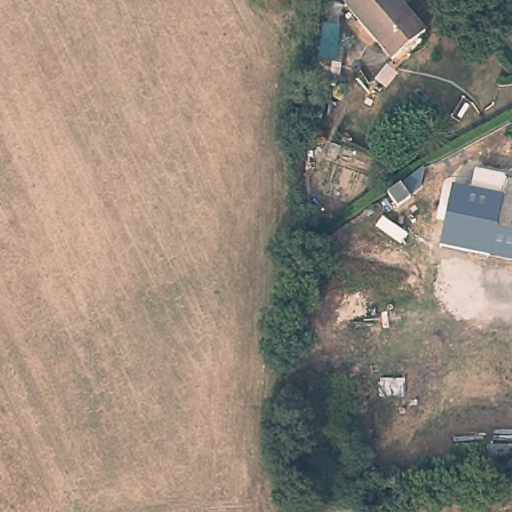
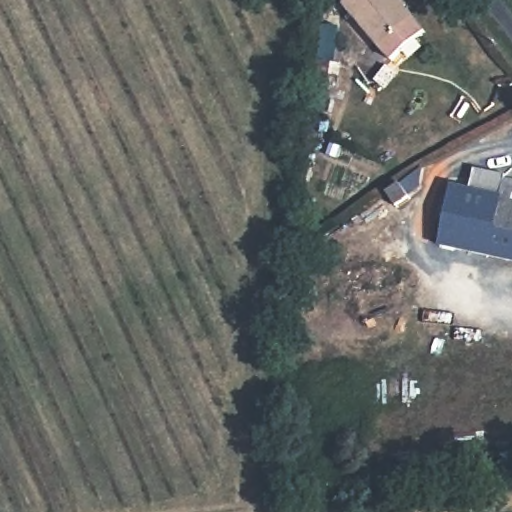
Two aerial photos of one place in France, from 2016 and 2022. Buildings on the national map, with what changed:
unchanged [(396,0),(396,1),(423,32),(391,61),(340,3),(343,0),(396,0)]
unchanged [(439,174),(488,185),(489,178),(512,183),(512,262),(425,244),(439,174)]

